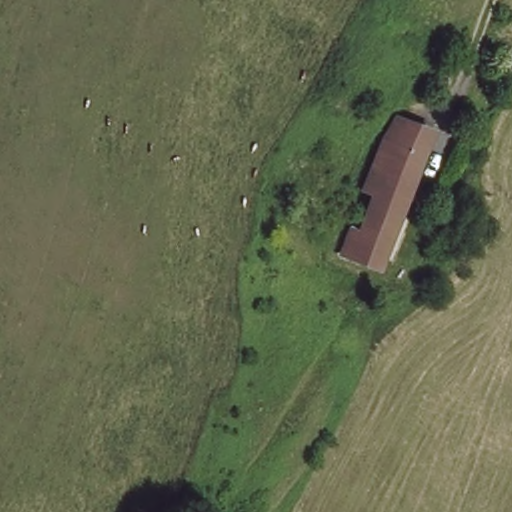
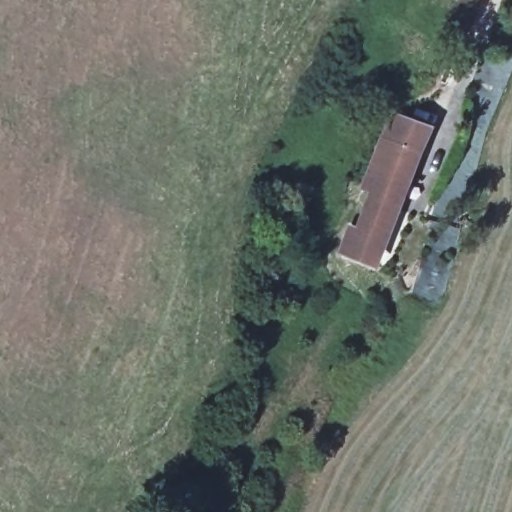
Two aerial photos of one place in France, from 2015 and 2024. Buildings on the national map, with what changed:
unchanged [(432,124),(374,262),(340,249),(350,225),(360,227),(375,190),(364,185),(370,170),(397,110),(432,124)]

